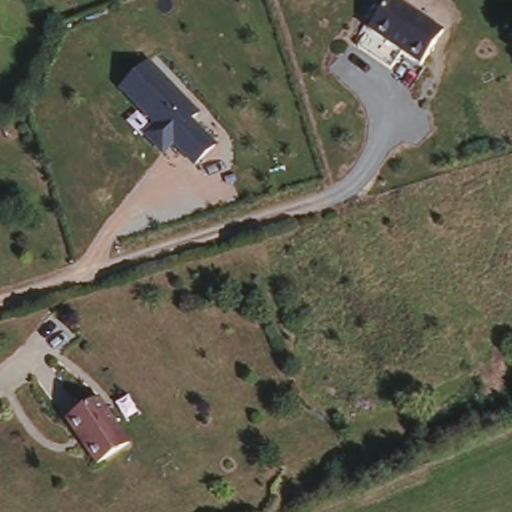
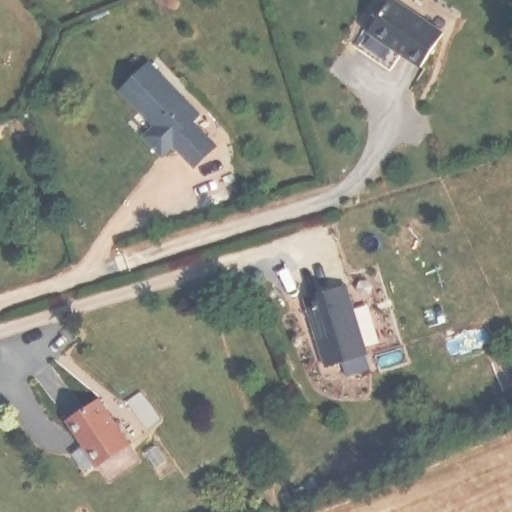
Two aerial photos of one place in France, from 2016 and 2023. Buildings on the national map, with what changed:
unchanged [(68,4),(66,0),(74,0),(68,4)]
unchanged [(387,0),(395,0),(442,30),(421,65),(398,50),(388,62),(359,42),(368,29),(387,0)]
unchanged [(149,60),(199,113),(193,120),(218,146),(195,168),(175,148),(163,157),(143,136),(153,127),(118,91),(149,60)]
new [(346,283),(368,356),(327,370),(305,300),(346,283)]
unchanged [(98,400),(128,445),(97,466),(66,421),(98,400)]

